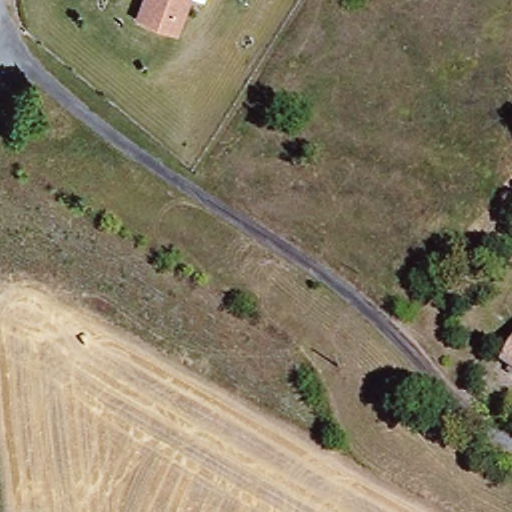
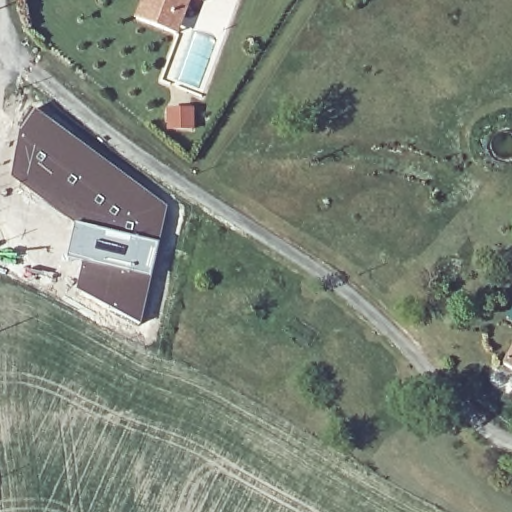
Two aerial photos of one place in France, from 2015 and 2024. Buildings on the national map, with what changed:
unchanged [(146,0),(191,0),(182,25),(176,39),(137,22),(146,0)]
new [(194,106),(195,130),(167,130),(166,107),(194,106)]
new [(18,133),(35,109),(169,206),(160,242),(140,323),(74,289),(80,261),(65,258),(73,224),(20,184),(9,179),(18,133)]
unchanged [(512,372),(502,365),(512,349),(512,372)]

